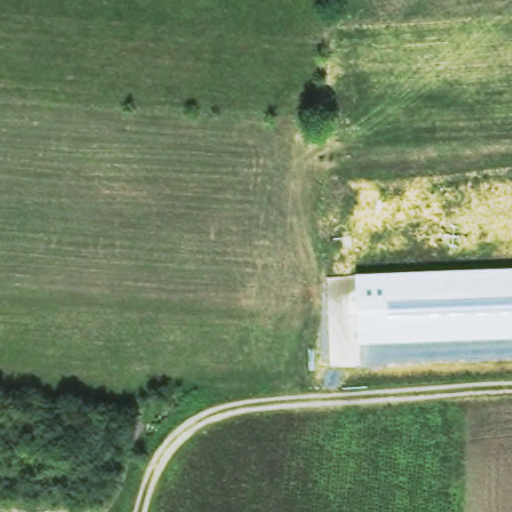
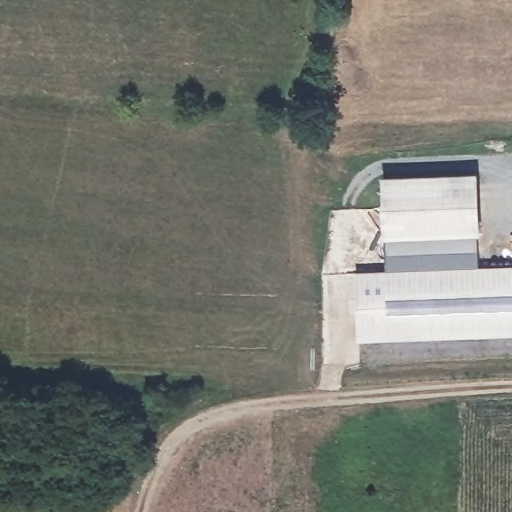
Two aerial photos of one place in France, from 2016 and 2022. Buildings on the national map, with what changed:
new [(385,271),(383,238),(381,176),(478,173),(479,235),(479,268),(385,271)]
unchanged [(385,271),(479,268),(512,267),(512,338),(357,343),(354,272),(385,271)]

